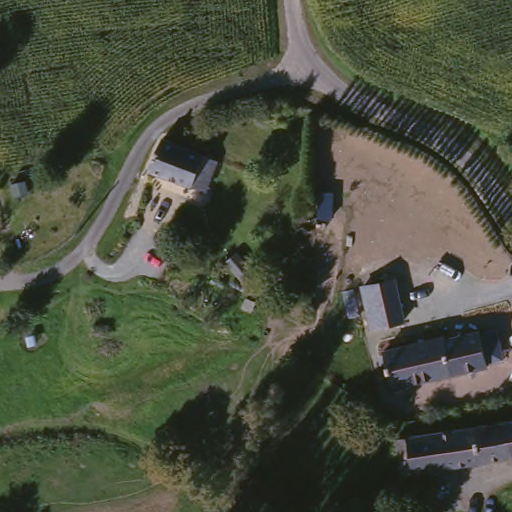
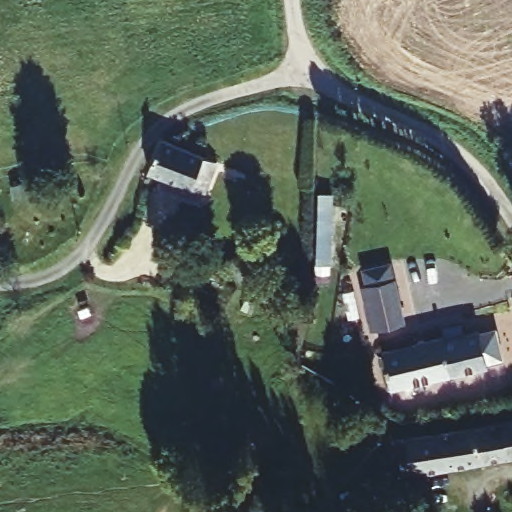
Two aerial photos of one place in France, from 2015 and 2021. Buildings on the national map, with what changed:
unchanged [(205,159),(208,150),(217,154),(214,162),(216,162),(204,194),(148,172),(160,140),(205,159)]
unchanged [(236,254),(256,277),(247,285),(226,262),(236,254)]
unchanged [(369,331),(359,285),(396,277),(405,322),(369,331)]
unchanged [(494,330),(501,363),(483,374),(386,395),(378,357),(494,330)]
unchanged [(411,461),(398,463),(395,442),(475,430),(493,428),(507,425),(512,453),(512,462),(415,477),(411,461)]
unchanged [(512,453),(507,425),(512,425),(512,453)]

